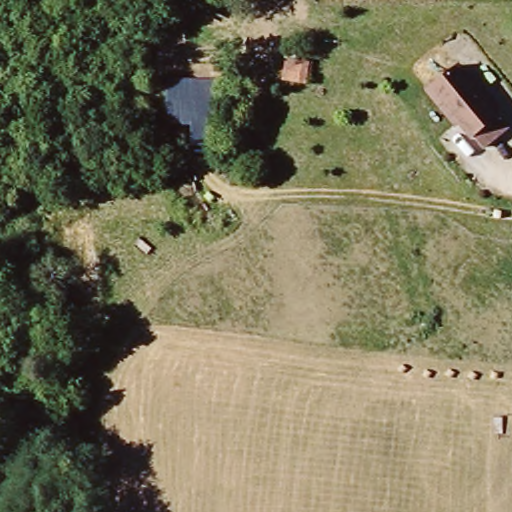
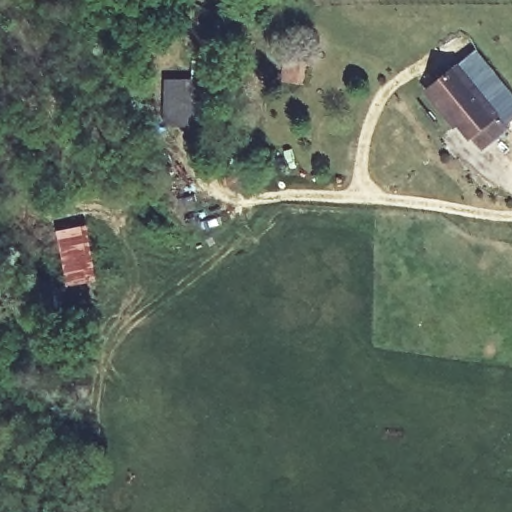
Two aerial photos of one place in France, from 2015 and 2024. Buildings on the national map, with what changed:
unchanged [(284,62),(308,65),(304,86),(281,82),(284,62)]
unchanged [(468,136),(427,85),(454,62),(506,126),(481,146),(471,133),(468,136)]
unchanged [(214,82),(211,147),(189,146),(190,128),(164,125),(165,79),(214,82)]
new [(89,224),(98,280),(67,285),(59,228),(89,224)]

